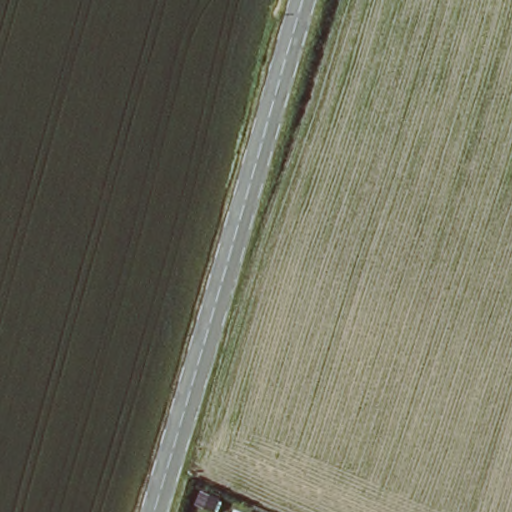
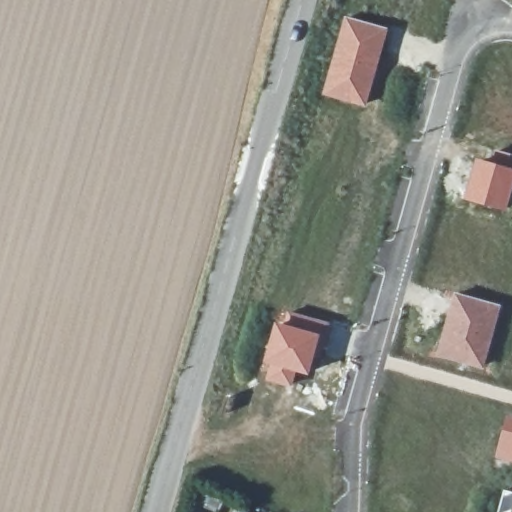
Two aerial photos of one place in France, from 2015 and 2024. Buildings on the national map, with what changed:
new [(344,15),(389,28),(365,107),(320,94),(344,15)]
new [(491,161),(495,150),(512,154),(512,197),(506,212),(465,200),(476,156),(491,161)]
new [(453,291),(502,304),(483,371),(433,357),(453,291)]
new [(266,364),(263,363),(275,320),(286,323),(289,312),(329,322),(310,376),(297,373),(292,388),(262,380),(266,364)]
new [(512,415),(512,463),(494,458),(506,414),(512,415)]
new [(512,491),(512,512),(496,512),(502,488),(512,491)]

